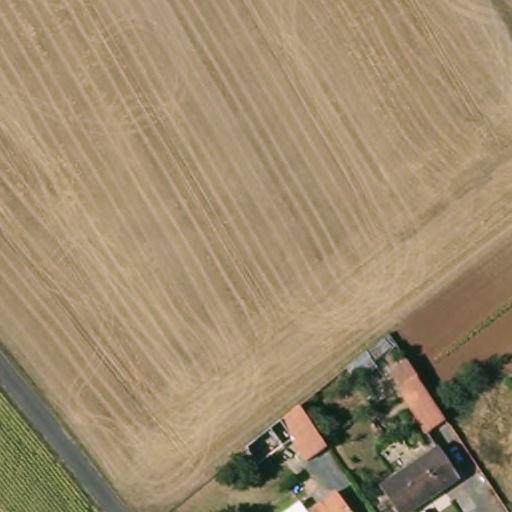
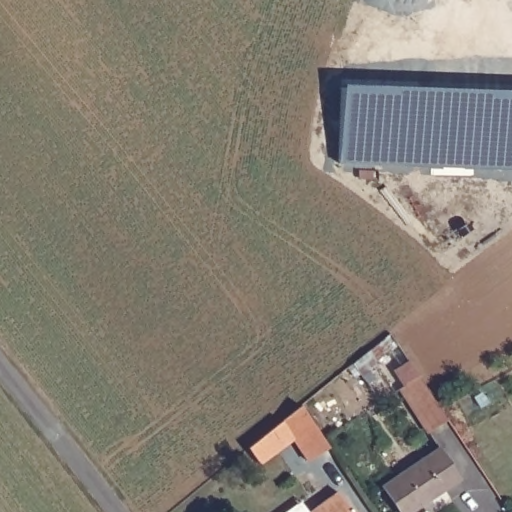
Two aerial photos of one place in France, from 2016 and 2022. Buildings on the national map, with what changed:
new [(340,164),(342,86),(512,92),(512,170),(340,164)]
unchanged [(444,413),(445,415),(446,416),(428,429),(400,386),(406,382),(395,365),(407,357),(418,374),(432,394),(439,405),(441,408),(444,413)]
unchanged [(303,409),(305,413),(328,445),(307,459),(280,419),(300,404),(303,409)]
unchanged [(441,447),(460,477),(407,512),(402,512),(383,485),(441,447)]
unchanged [(339,492),(351,512),(309,512),(339,492)]

